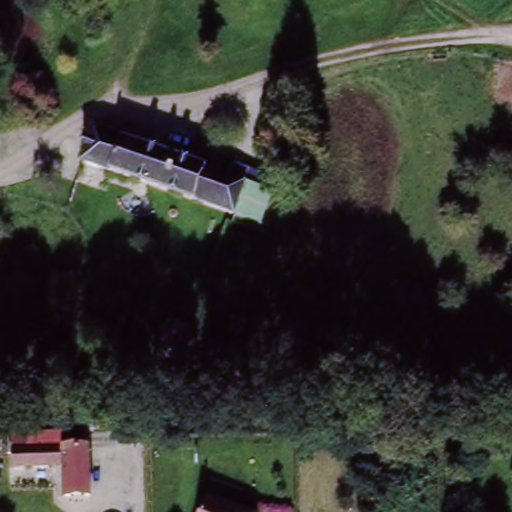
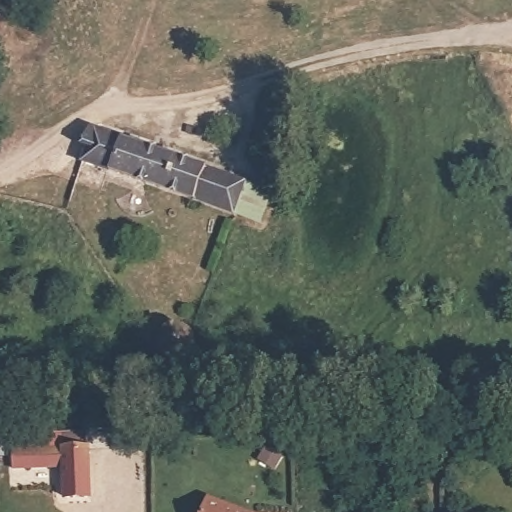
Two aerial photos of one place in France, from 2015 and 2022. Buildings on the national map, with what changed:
unchanged [(100,133),(249,183),(238,214),(90,164),(100,133)]
unchanged [(158,349),(156,342),(155,333),(159,322),(165,317),(176,315),(186,317),(196,321),(201,331),(203,344),(198,354),(189,360),(179,362),(169,360),(161,354),(158,349)]
unchanged [(76,469),(66,469),(14,468),(14,447),(76,448),(76,469)]
unchanged [(93,448),(93,502),(65,502),(66,469),(76,469),(76,448),(93,448)]
unchanged [(258,512),(257,512),(201,512),(208,493),(258,512)]

